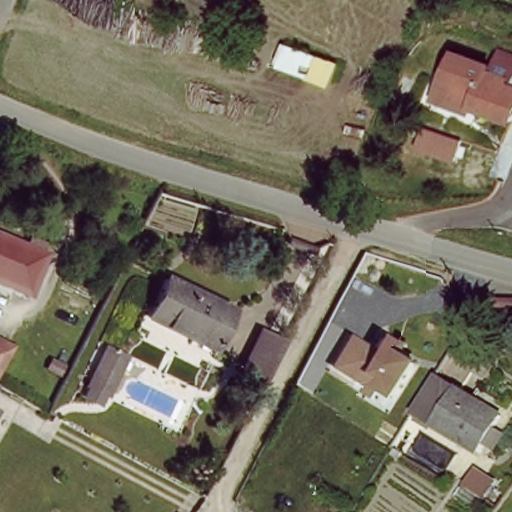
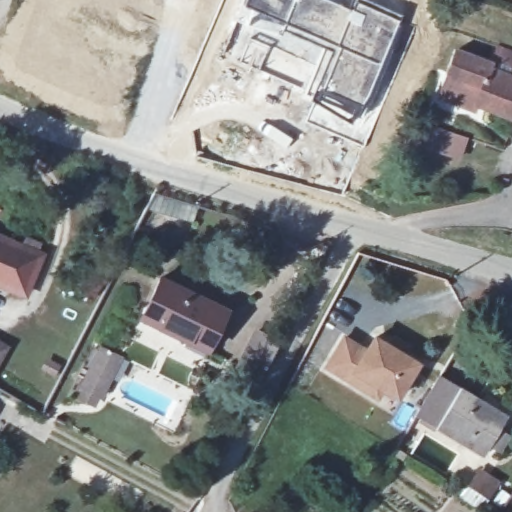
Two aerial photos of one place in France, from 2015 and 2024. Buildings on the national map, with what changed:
new [(243,0),(295,0),(278,37),(242,22),(248,9),(241,5),(243,0)]
new [(278,37),(295,0),(371,0),(401,15),(383,59),(362,105),(359,103),(351,119),(309,98),(260,71),(278,37)]
new [(242,22),(278,37),(260,71),(227,56),(242,22)]
unchanged [(443,90),(449,61),(487,70),(485,76),(507,81),(506,86),(512,87),(512,120),(479,111),(477,118),(455,112),(438,109),(443,90)]
new [(421,121),(468,136),(459,161),(412,146),(421,121)]
unchanged [(4,295),(0,293),(0,239),(25,252),(4,295)]
unchanged [(159,282),(226,315),(206,355),(138,321),(159,282)]
unchanged [(255,389),(232,377),(255,332),(277,344),(255,389)]
unchanged [(353,379),(329,365),(346,337),(369,350),(377,336),(392,345),(397,336),(410,345),(405,353),(420,362),(400,395),(385,386),(380,395),(353,379)]
unchanged [(124,355),(101,395),(81,385),(104,344),(124,355)]
unchanged [(0,364),(0,349),(6,352),(0,364)]
unchanged [(492,463),(424,422),(446,385),(512,424),(512,429),(492,463)]

